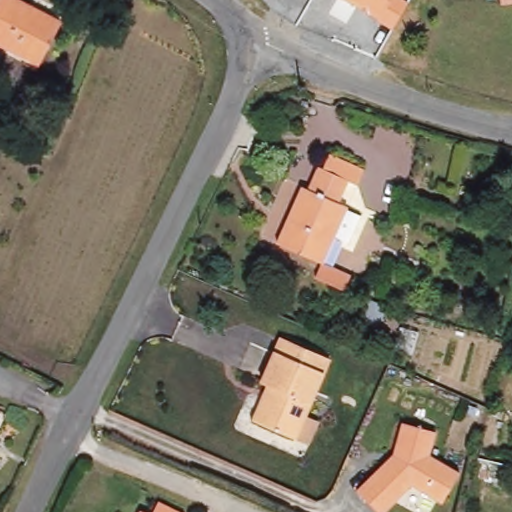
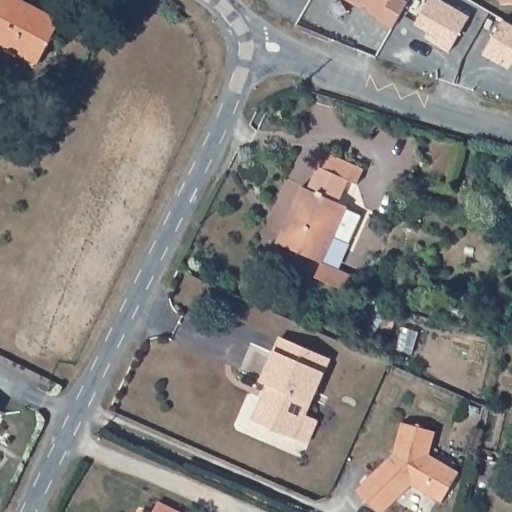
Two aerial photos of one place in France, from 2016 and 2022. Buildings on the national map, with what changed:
unchanged [(36,64),(0,45),(0,0),(14,0),(57,22),(36,64)]
unchanged [(376,17),(346,0),(403,0),(409,3),(394,30),(374,20),(376,17)]
new [(440,0),(470,17),(449,53),(432,42),(435,37),(415,25),(430,0),(440,0)]
unchanged [(506,0),(503,1),(502,0),(506,0)]
new [(503,21),(512,26),(512,65),(503,60),(500,66),(483,56),(503,21)]
unchanged [(343,291),(314,277),(320,264),(276,244),(300,190),(306,192),(317,169),(322,171),(328,157),(362,172),(356,186),(347,182),(337,205),(346,209),(345,211),(360,217),(349,244),(333,237),(322,265),(349,277),(343,291)]
unchanged [(385,306),(379,327),(360,322),(366,301),(385,306)]
unchanged [(307,444),(294,438),(252,421),(263,397),(267,386),(260,382),(280,338),(328,358),(303,416),(316,422),(307,444)]
unchanged [(357,491),(393,455),(401,421),(434,431),(426,455),(458,472),(441,502),(411,485),(384,512),(377,512),(357,491)]
unchanged [(157,502),(178,512),(152,512),(157,502)]

